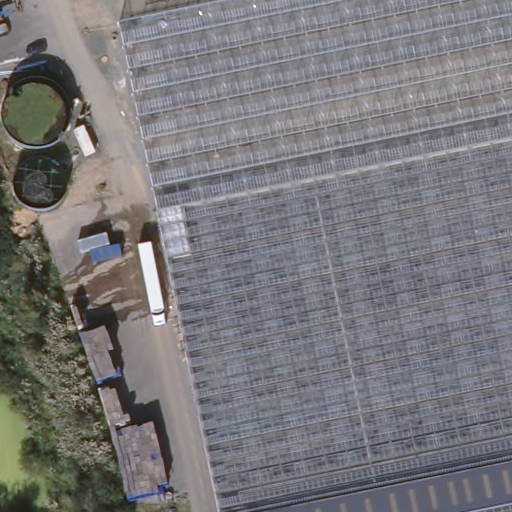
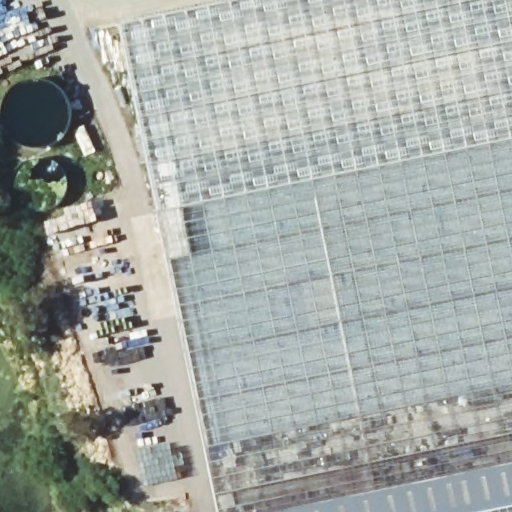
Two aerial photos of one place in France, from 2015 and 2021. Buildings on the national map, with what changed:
unchanged [(224,0),(512,0),(512,143),(154,217),(116,22),(224,0)]
unchanged [(512,143),(512,470),(317,512),(217,512),(154,217),(512,143)]
unchanged [(512,470),(512,512),(317,512),(512,470)]

